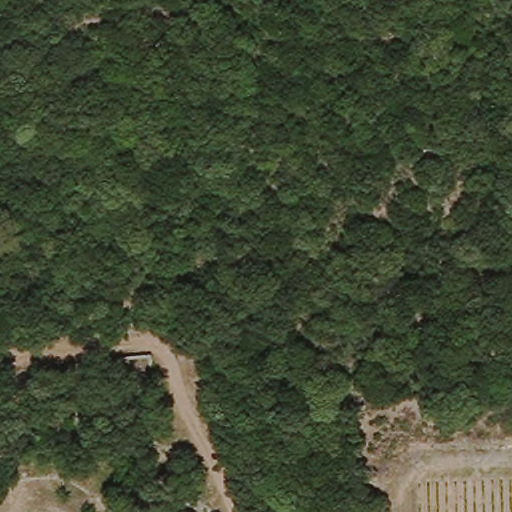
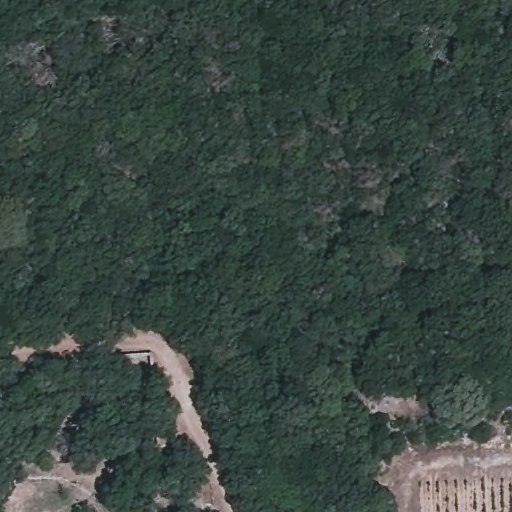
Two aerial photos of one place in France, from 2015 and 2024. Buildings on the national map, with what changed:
unchanged [(79,405),(78,370),(98,369),(98,401),(79,405)]

